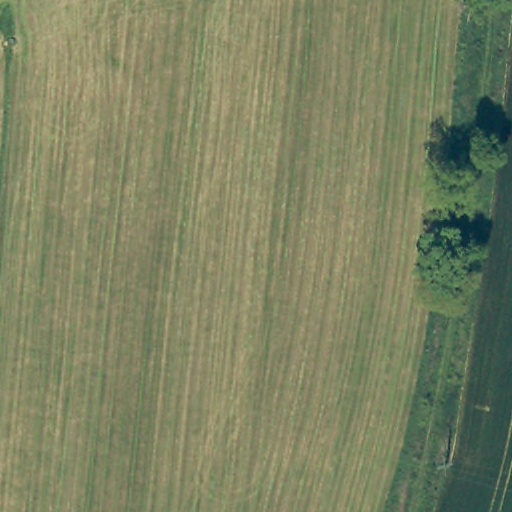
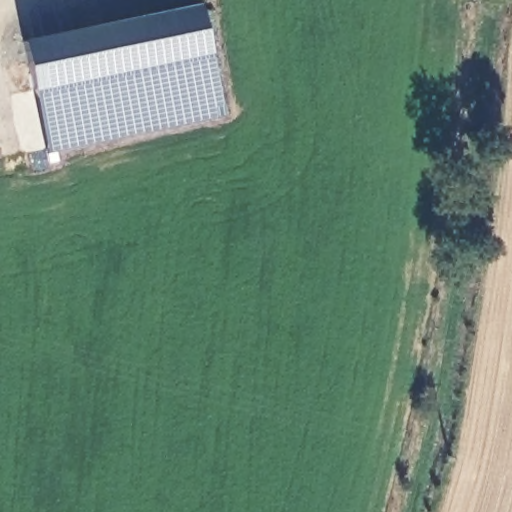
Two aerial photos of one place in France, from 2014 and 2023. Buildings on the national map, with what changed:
new [(201,4),(223,115),(47,152),(25,41),(201,4)]

